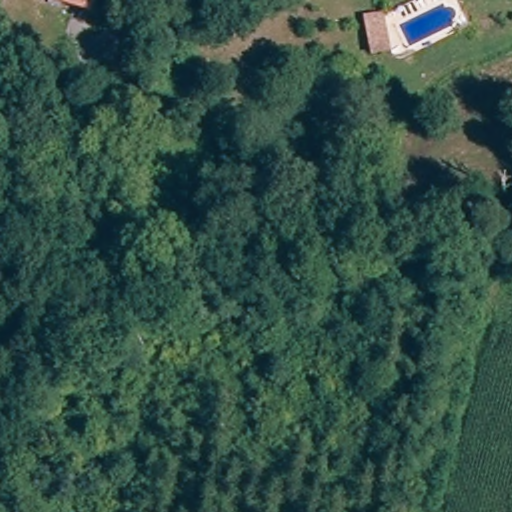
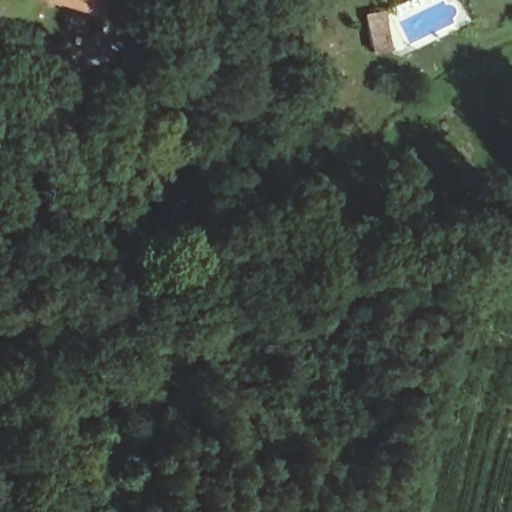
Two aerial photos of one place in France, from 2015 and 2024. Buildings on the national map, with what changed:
unchanged [(63,0),(93,0),(92,6),(63,0)]
unchanged [(388,47),(371,50),(364,16),(379,11),(388,47)]

